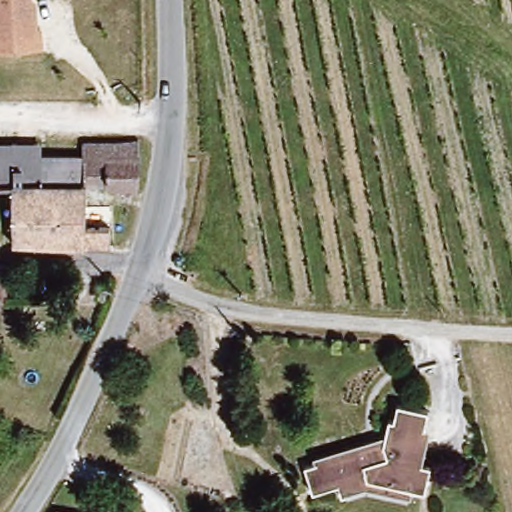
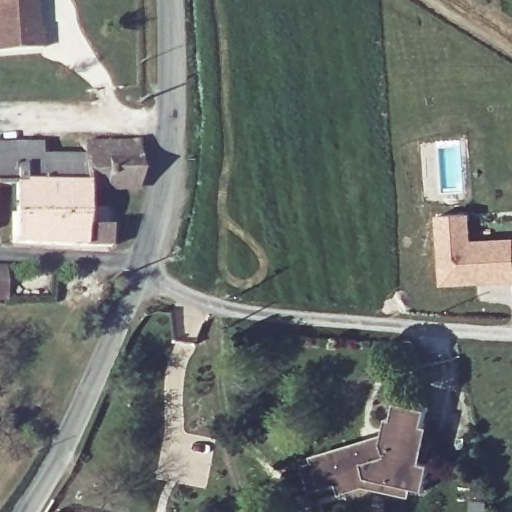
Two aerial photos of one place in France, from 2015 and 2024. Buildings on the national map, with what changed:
unchanged [(0,53),(0,0),(33,0),(33,9),(39,14),(40,31),(44,30),(45,51),(0,53)]
unchanged [(12,237),(4,236),(4,228),(0,228),(0,141),(14,141),(37,140),(37,154),(87,154),(85,181),(85,190),(85,220),(108,221),(108,244),(86,245),(12,244),(12,237)]
unchanged [(110,140),(109,189),(85,190),(85,181),(87,154),(87,140),(110,140)]
unchanged [(136,141),(136,179),(126,202),(110,198),(109,189),(110,140),(136,141)]
new [(449,279),(444,210),(474,208),(476,237),(512,234),(512,274),(449,279)]
unchanged [(0,272),(1,272),(0,311),(0,272)]
unchanged [(349,486),(344,474),(318,483),(309,457),(372,437),(372,441),(383,440),(388,409),(396,410),(398,393),(428,399),(420,436),(427,437),(425,452),(432,454),(428,479),(371,469),(374,477),(349,486)]
unchanged [(65,498),(121,505),(120,512),(63,512),(65,498)]

